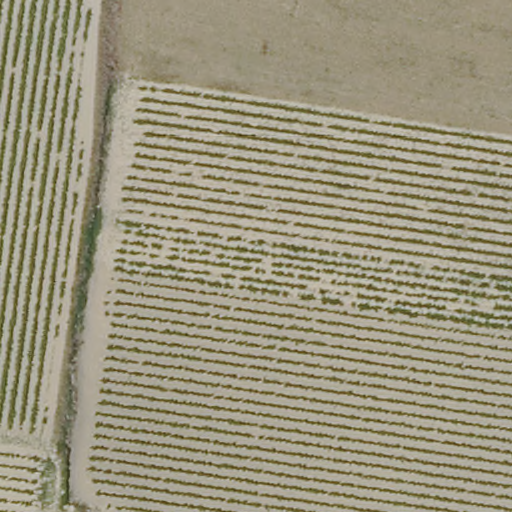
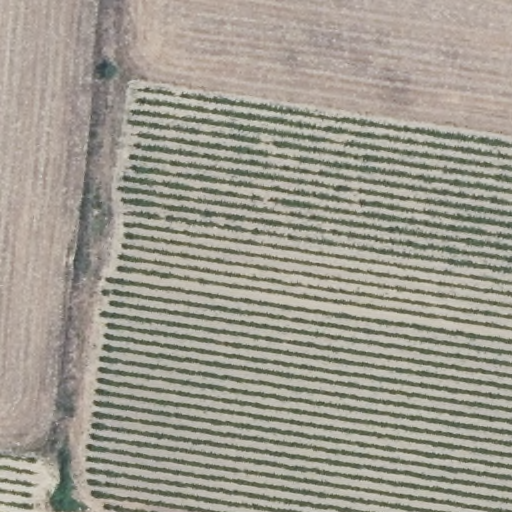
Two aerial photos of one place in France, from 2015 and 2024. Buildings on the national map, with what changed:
[]

